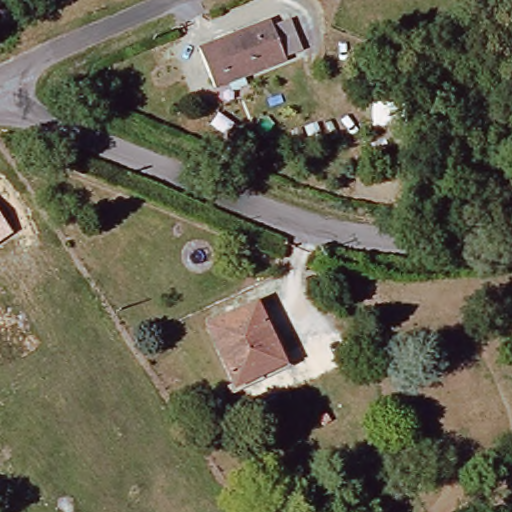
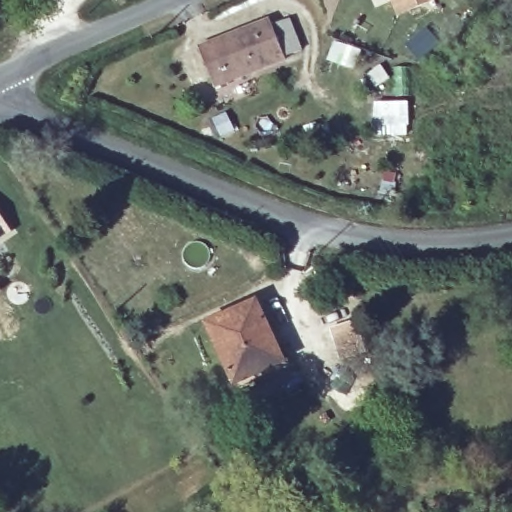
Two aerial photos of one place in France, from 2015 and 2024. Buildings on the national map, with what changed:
new [(397,0),(433,0),(403,14),(397,0)]
unchanged [(201,57),(269,27),(287,63),(216,91),(201,57)]
unchanged [(0,241),(0,214),(13,233),(0,241)]
unchanged [(211,330),(259,309),(260,313),(289,367),(244,393),(214,341),(211,330)]

